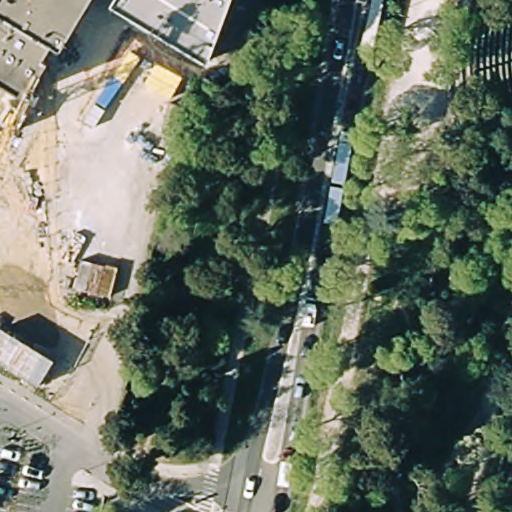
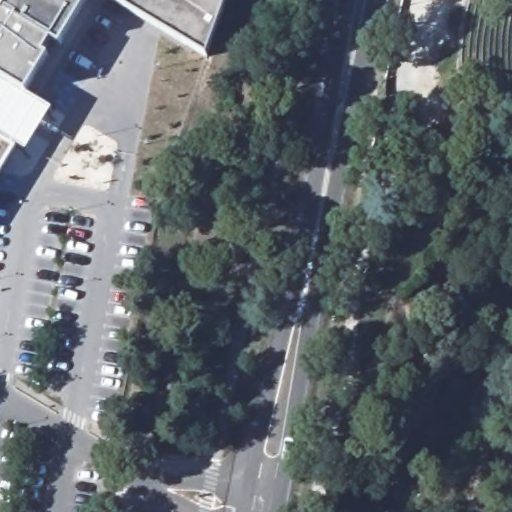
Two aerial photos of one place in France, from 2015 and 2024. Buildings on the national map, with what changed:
unchanged [(53,39),(45,52),(50,56),(28,90),(0,74),(0,0),(88,0),(61,43),(53,39)]
unchanged [(110,1),(111,0),(228,0),(206,58),(110,1)]
unchanged [(463,70),(469,17),(475,0),(512,0),(512,112),(466,119),(463,70)]
new [(24,93),(53,108),(26,150),(16,145),(0,172),(0,74),(25,88),(24,93)]

